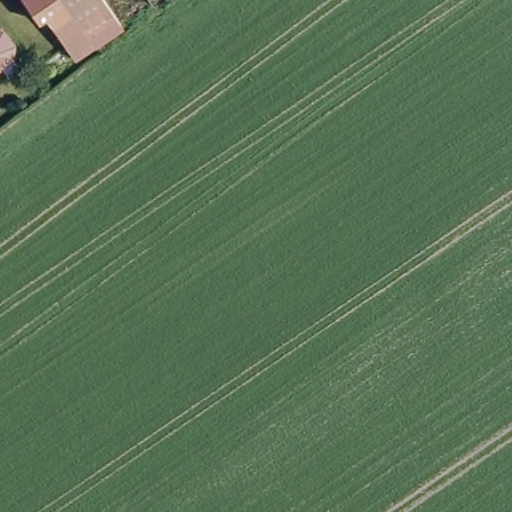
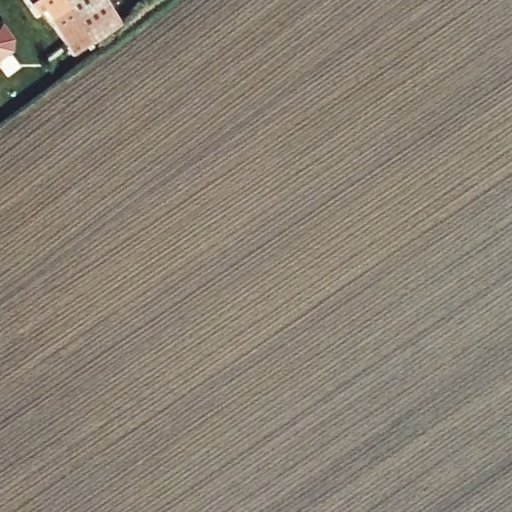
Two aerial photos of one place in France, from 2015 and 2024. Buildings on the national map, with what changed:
unchanged [(90,43),(92,45),(73,59),(42,16),(35,22),(19,0),(102,0),(118,22),(90,43)]
unchanged [(15,46),(12,57),(0,65),(0,30),(4,31),(15,46)]

